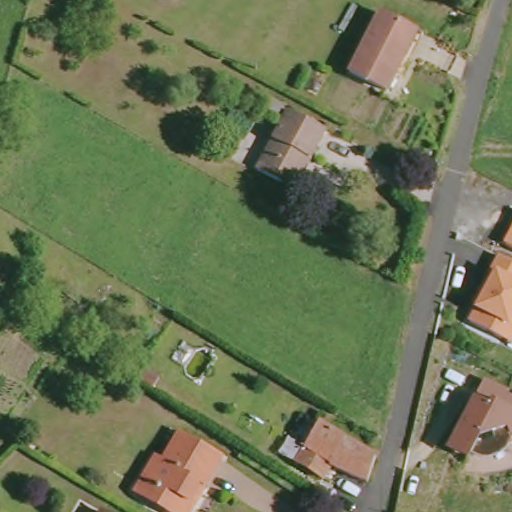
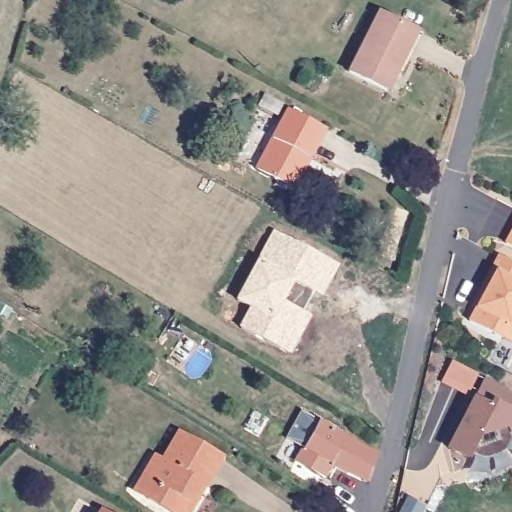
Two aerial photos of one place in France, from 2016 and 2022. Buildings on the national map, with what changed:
unchanged [(398,54),(402,56),(387,86),(349,68),(378,9),(413,26),(398,54)]
unchanged [(258,101),(263,91),(282,101),(277,111),(258,101)]
unchanged [(286,181),(256,165),(288,106),(324,126),(309,154),(293,185),(286,181)]
unchanged [(512,230),(512,247),(504,243),(512,230)]
new [(242,327),(253,306),(238,299),(274,232),(335,265),(289,352),(242,327)]
unchanged [(470,319),(478,305),(474,303),(492,269),(500,253),(512,260),(512,342),(502,337),(470,319)]
unchanged [(497,453),(483,457),(472,453),(467,461),(445,449),(473,395),(483,376),(508,388),(506,394),(512,397),(512,433),(504,448),(497,453)]
unchanged [(361,477),(361,478),(325,460),(317,474),(289,457),(313,418),(370,453),(361,477)]
unchanged [(147,495),(135,488),(143,472),(154,452),(163,457),(180,427),(221,451),(203,482),(187,512),(176,512),(147,495)]
unchanged [(111,512),(91,512),(96,503),(111,512)]

